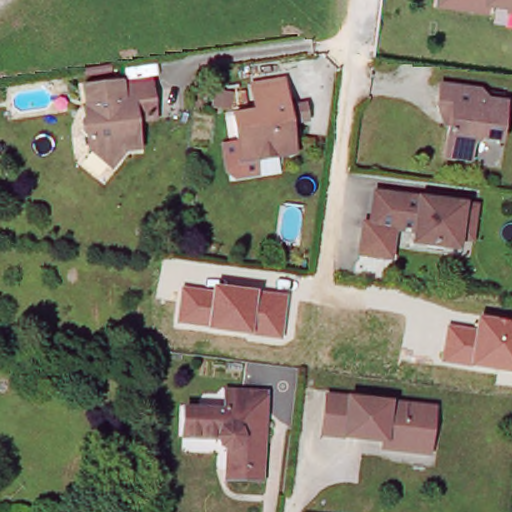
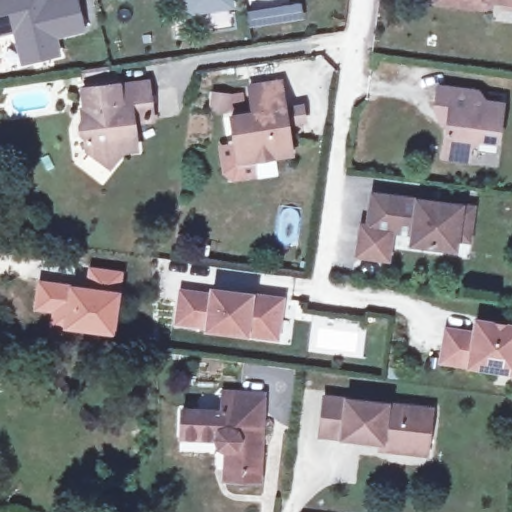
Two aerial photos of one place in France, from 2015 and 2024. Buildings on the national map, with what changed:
new [(55,0),(77,0),(83,31),(54,37),(58,58),(18,65),(12,33),(0,37),(0,0),(39,0),(40,3),(55,0)]
new [(184,0),(231,0),(232,8),(187,15),(184,0)]
unchanged [(435,0),(480,0),(479,5),(435,0)]
new [(298,5),(300,19),(283,21),(248,27),(247,14),(282,8),(298,5)]
unchanged [(117,148),(118,158),(107,173),(83,155),(77,115),(82,115),(78,94),(113,89),(127,87),(149,81),(155,123),(135,126),(130,127),(132,146),(117,148)]
unchanged [(470,88),(469,100),(496,104),(490,142),(473,139),(461,149),(459,159),(435,156),(442,110),(427,109),(432,85),(470,88)]
unchanged [(292,157),(240,167),(231,121),(253,118),(248,90),(280,86),(292,157)]
unchanged [(257,177),(233,181),(223,174),(219,147),(235,144),(240,167),(255,164),(257,177)]
unchanged [(450,234),(448,244),(404,238),(405,227),(390,226),(362,222),(366,188),(467,201),(465,219),(464,236),(450,234)]
unchanged [(362,222),(390,226),(387,262),(347,256),(351,221),(362,222)]
new [(37,277),(84,283),(87,264),(125,269),(115,335),(47,325),(49,313),(32,311),(37,277)]
unchanged [(202,332),(203,329),(173,326),(178,290),(208,293),(209,287),(283,298),(278,341),(202,332)]
unchanged [(438,363),(444,328),(472,332),(473,319),(512,325),(512,375),(438,363)]
unchanged [(226,483),(227,469),(228,455),(220,448),(221,442),(183,440),(185,410),(225,414),(225,393),(266,393),(262,470),(260,483),(226,483)]
unchanged [(405,449),(377,447),(377,440),(357,439),(316,436),(319,398),(426,406),(423,439),(422,450),(405,449)]

